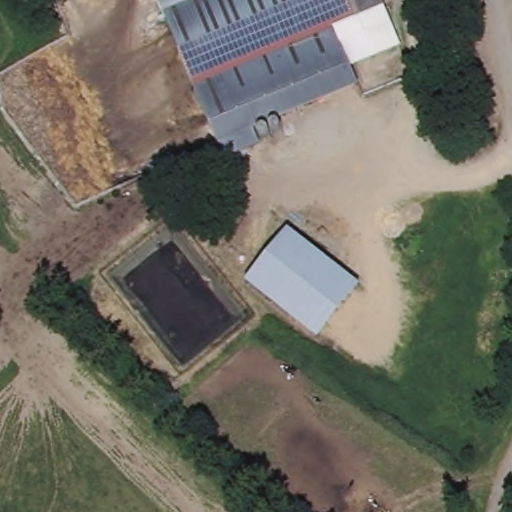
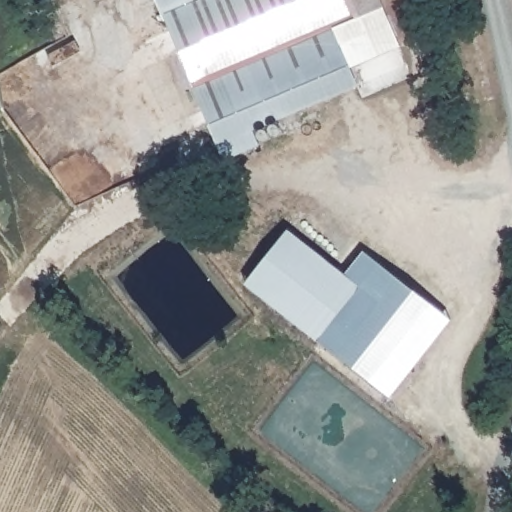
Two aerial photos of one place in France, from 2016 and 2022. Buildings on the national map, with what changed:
unchanged [(163,25),(153,0),(222,0),(163,25)]
unchanged [(303,0),(379,0),(390,34),(343,51),(359,87),(280,121),(286,137),(223,164),(175,52),(303,0)]
unchanged [(244,287),(283,231),(358,286),(317,345),(244,287)]
new [(453,322),(390,401),(320,341),(358,286),(344,275),(364,251),(453,322)]

